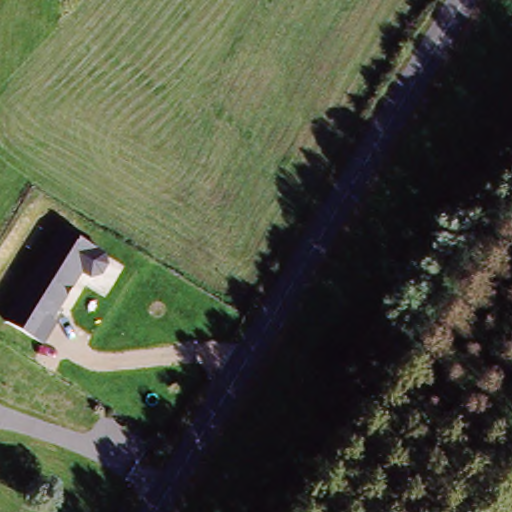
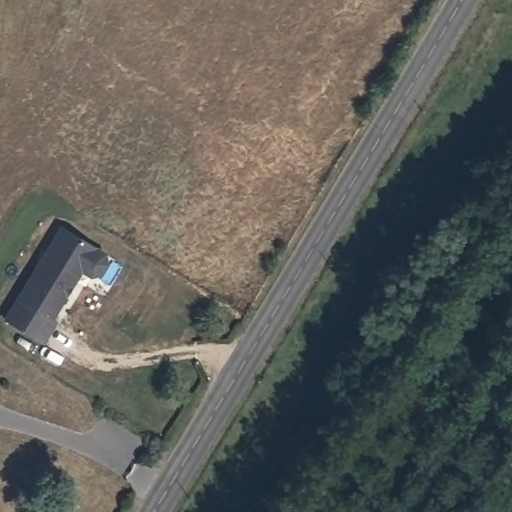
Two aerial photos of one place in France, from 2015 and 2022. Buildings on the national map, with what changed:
unchanged [(114,260),(105,280),(85,272),(43,346),(8,323),(63,236),(114,260)]

